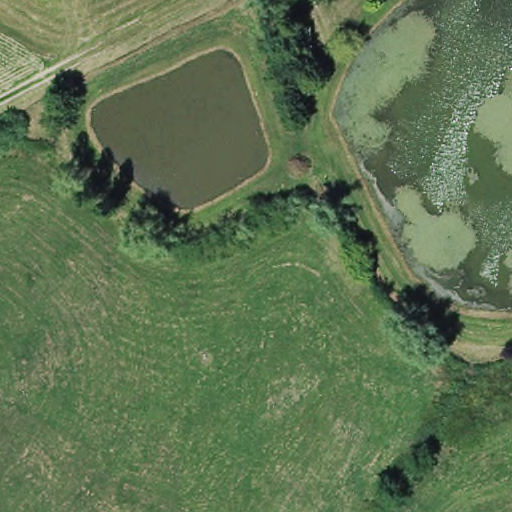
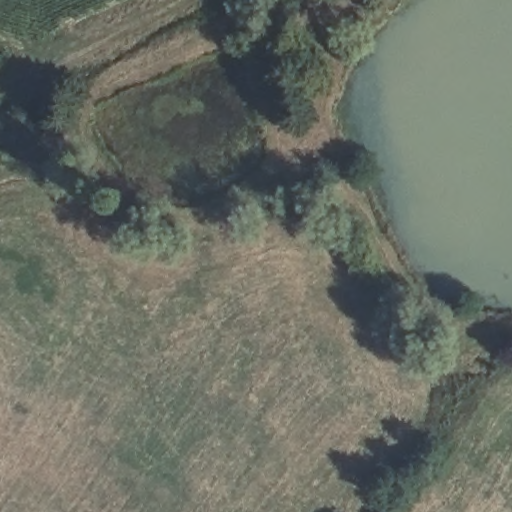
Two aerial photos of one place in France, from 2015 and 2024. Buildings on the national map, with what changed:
unchanged [(289,25),(315,26),(317,70),(297,74),(289,25)]

